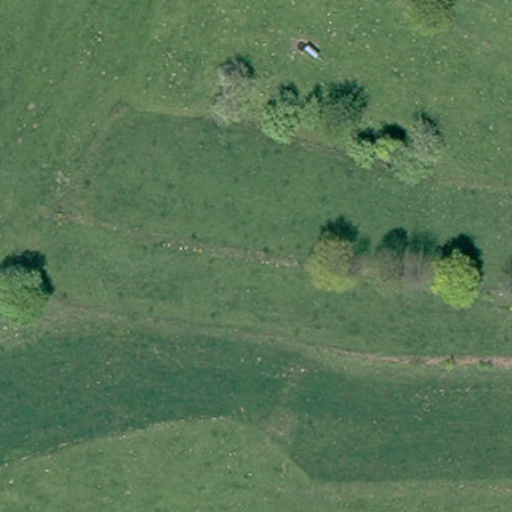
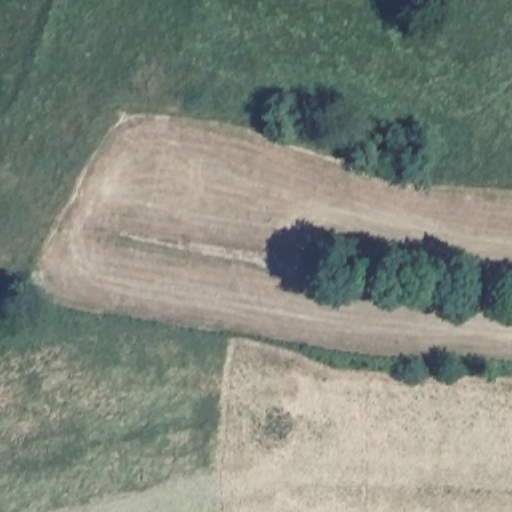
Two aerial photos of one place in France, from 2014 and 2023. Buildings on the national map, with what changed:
[]

